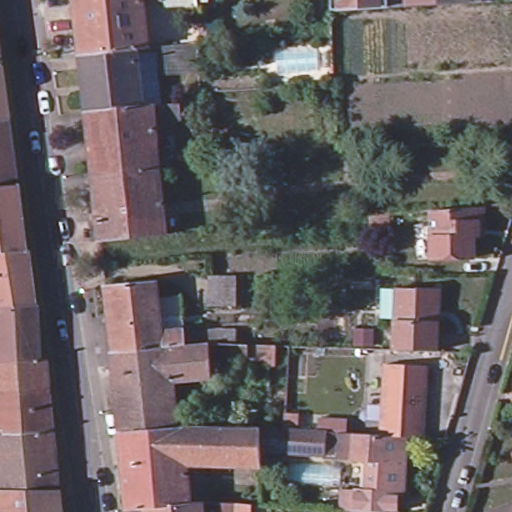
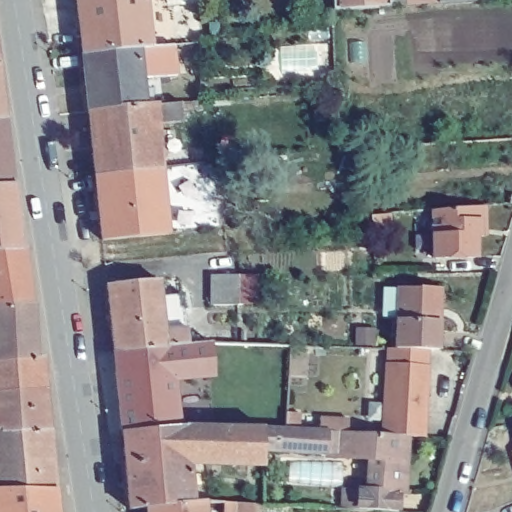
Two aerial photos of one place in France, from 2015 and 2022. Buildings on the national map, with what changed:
unchanged [(97,135),(94,115),(88,60),(81,0),(204,0),(205,12),(164,15),(163,3),(150,4),(153,54),(158,54),(192,51),(206,50),(207,78),(193,78),(160,79),(162,110),(162,112),(188,110),(196,109),(196,118),(188,118),(189,126),(163,128),(164,130),(97,135)]
unchanged [(410,12),(398,12),(398,8),(393,8),(393,13),(339,15),(338,0),(410,0),(410,12)]
unchanged [(442,0),(476,0),(476,9),(442,11),(442,0)]
unchanged [(8,121),(0,122),(0,67),(8,121)]
unchanged [(17,186),(0,187),(0,122),(8,121),(17,186)]
unchanged [(109,247),(102,180),(97,135),(164,130),(167,174),(173,173),(173,180),(167,180),(172,241),(109,247)]
unchanged [(25,252),(0,251),(0,187),(17,186),(25,252)]
unchanged [(512,194),(512,205),(509,205),(512,194)]
unchanged [(485,233),(479,234),(480,264),(438,265),(437,217),(485,213),(485,233)]
unchanged [(393,232),(375,234),(373,218),(392,216),(393,232)]
unchanged [(0,363),(0,251),(25,252),(28,252),(36,305),(38,359),(38,360),(0,363)]
unchanged [(213,308),(213,292),(213,276),(239,275),(239,293),(240,308),(213,308)]
unchanged [(172,375),(171,367),(118,369),(116,349),(113,320),(108,283),(159,277),(160,288),(182,285),(187,326),(217,326),(238,326),(239,341),(271,342),(279,342),(277,358),(270,358),(270,353),(212,351),(212,372),(172,375)]
unchanged [(400,290),(420,291),(420,290),(442,290),(440,352),(397,351),(400,290)]
unchanged [(408,431),(383,429),(389,357),(430,361),(425,432),(408,431)]
unchanged [(0,432),(0,363),(38,360),(38,359),(47,359),(48,388),(52,433),(0,432)]
unchanged [(175,424),(125,428),(118,369),(171,367),(172,375),(175,424)]
unchanged [(186,423),(187,457),(127,459),(125,428),(175,424),(186,423)]
unchanged [(266,445),(265,461),(187,457),(186,423),(267,423),(266,445)]
unchanged [(398,507),(343,504),(345,485),(368,486),(370,455),(345,453),(327,452),(327,449),(266,445),(267,423),(330,425),(347,426),(383,429),(408,431),(407,462),(405,487),(400,486),(398,507)]
unchanged [(57,492),(0,491),(0,432),(52,433),(57,492)]
unchanged [(190,500),(147,502),(130,503),(127,459),(187,457),(190,500)]
unchanged [(0,512),(0,491),(57,492),(59,512),(0,512)]
unchanged [(251,499),(251,506),(250,511),(200,511),(201,512),(148,512),(147,502),(190,500),(199,499),(251,499)]

